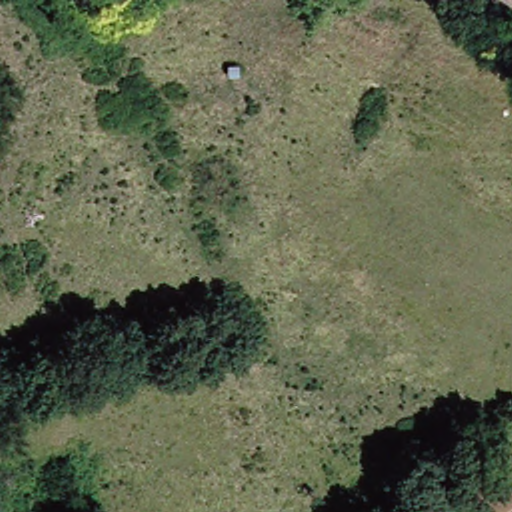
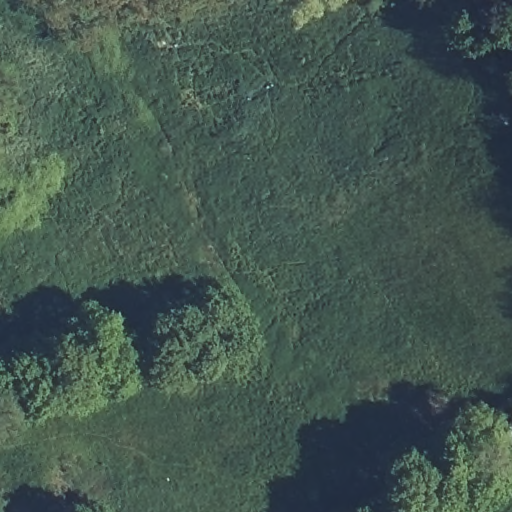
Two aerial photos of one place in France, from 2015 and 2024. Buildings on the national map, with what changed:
unchanged [(511,0),(512,0),(512,1),(511,0)]

